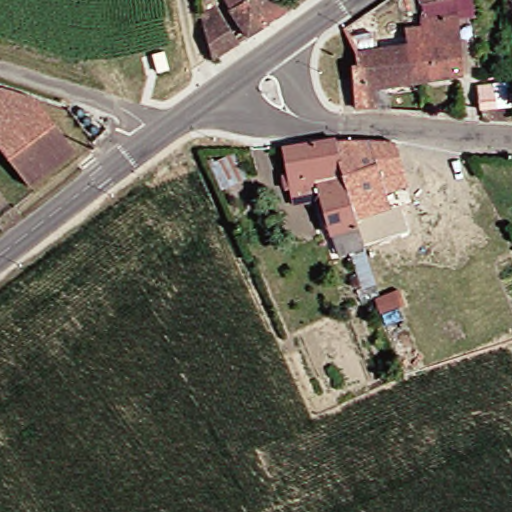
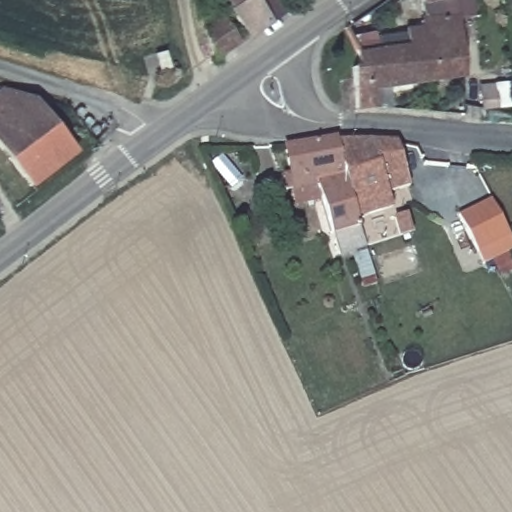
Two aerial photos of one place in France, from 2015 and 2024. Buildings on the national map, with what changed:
unchanged [(290,0),(296,10),(253,36),(238,0),(290,0)]
unchanged [(428,17),(424,5),(422,0),(443,0),(446,10),(428,17)]
unchanged [(217,61),(209,11),(224,5),(244,43),(217,61)]
unchanged [(352,34),(373,28),(374,36),(423,28),(424,21),(457,15),(462,75),(379,89),(380,108),(359,108),(358,95),(364,89),(358,65),(352,34)]
unchanged [(0,95),(6,90),(41,101),(0,133),(0,95)]
unchanged [(31,185),(0,145),(0,133),(41,101),(76,146),(31,185)]
unchanged [(393,140),(410,182),(389,186),(395,199),(361,212),(335,143),(393,140)]
unchanged [(365,286),(352,249),(350,245),(341,247),(321,191),(296,197),(292,181),(286,183),(282,170),(289,168),(284,143),(335,143),(361,212),(368,239),(363,241),(380,280),(365,286)]
unchanged [(210,159),(236,147),(250,179),(222,190),(210,159)]
new [(484,266),(459,217),(491,201),(512,243),(512,251),(484,266)]

